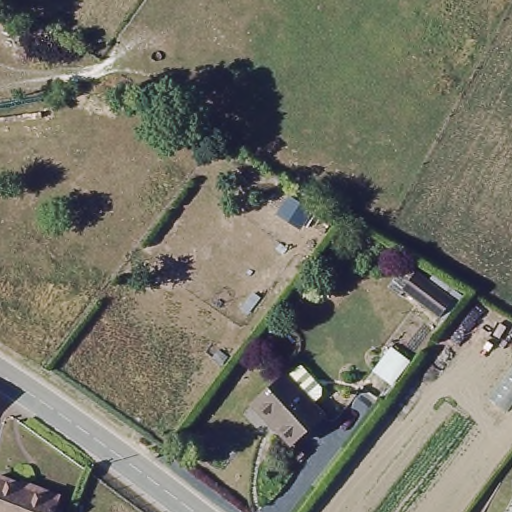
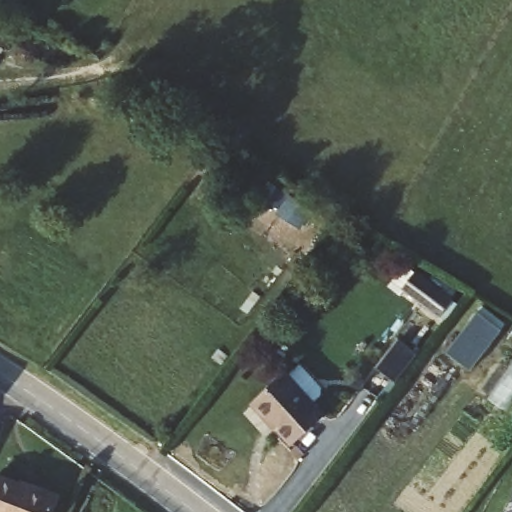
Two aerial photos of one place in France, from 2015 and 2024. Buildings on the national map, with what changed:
unchanged [(439,315),(437,316),(404,291),(400,296),(387,287),(405,265),(416,274),(417,272),(451,298),(450,300),(457,305),(447,321),(439,315)]
new [(507,324),(470,371),(447,353),(482,306),(507,324)]
new [(419,353),(396,382),(377,368),(399,338),(419,353)]
unchanged [(294,365),(319,392),(307,404),(317,415),(287,444),(249,404),(280,375),(282,376),(294,365)]
unchanged [(37,487),(59,496),(53,512),(0,512),(0,478),(35,492),(37,487)]

